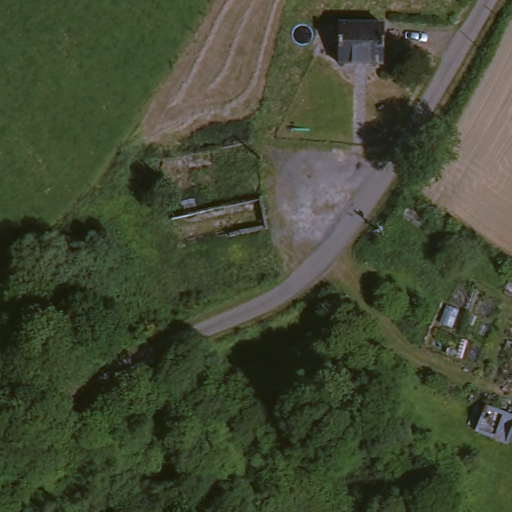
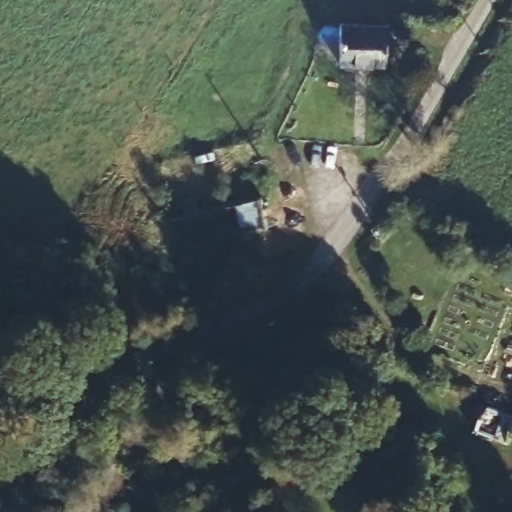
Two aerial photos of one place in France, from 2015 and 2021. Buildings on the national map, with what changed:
unchanged [(391,55),(348,65),(346,52),(331,55),(329,36),(386,23),(391,55)]

